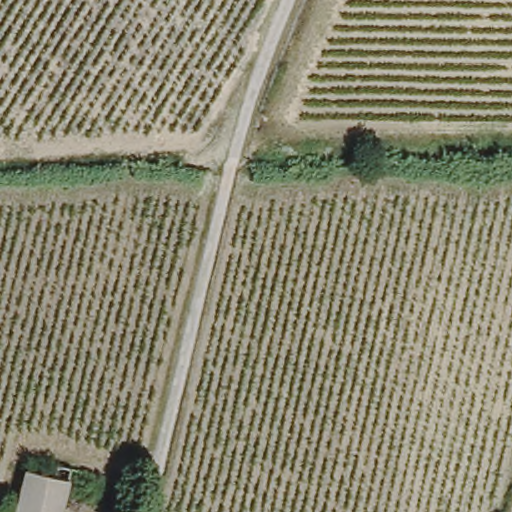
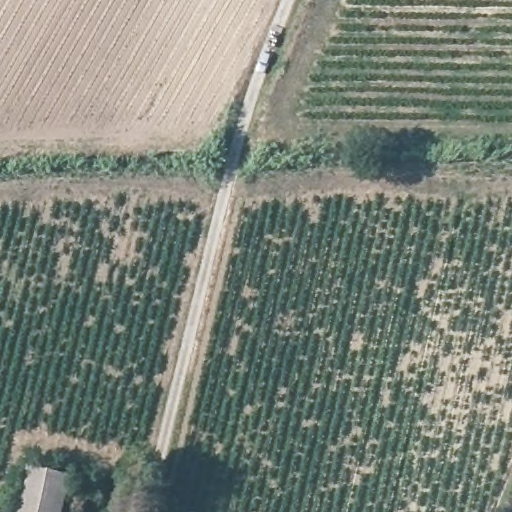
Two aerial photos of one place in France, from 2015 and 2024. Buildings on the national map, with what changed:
unchanged [(66,486),(59,512),(13,512),(23,474),(66,486)]

